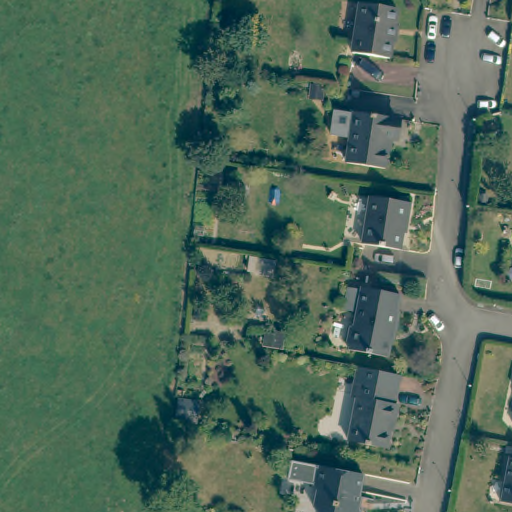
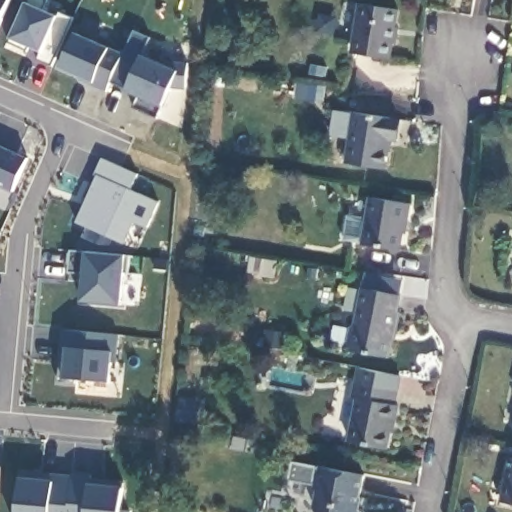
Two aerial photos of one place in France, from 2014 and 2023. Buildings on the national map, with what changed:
new [(11,0),(0,25),(0,0),(11,0)]
new [(57,16),(73,18),(52,66),(37,60),(41,51),(28,46),(24,50),(9,44),(31,0),(46,0),(42,9),(57,16)]
unchanged [(397,11),(395,28),(397,28),(395,43),(392,43),(390,60),(352,54),(360,5),(397,11)]
new [(106,92),(79,81),(81,78),(61,68),(76,34),(110,48),(124,54),(106,92)]
new [(143,56),(158,61),(187,63),(187,76),(186,89),(170,89),(161,108),(157,118),(133,108),(138,96),(126,91),(143,56)]
unchanged [(331,131),(335,106),(354,110),(354,109),(398,115),(394,136),(389,135),(385,165),(346,159),(350,135),(331,131)]
new [(28,159),(14,192),(0,186),(0,146),(28,159)]
new [(96,177),(94,176),(101,159),(137,175),(130,191),(158,203),(146,229),(133,223),(123,244),(75,223),(96,177)]
unchanged [(409,205),(406,225),(403,225),(399,252),(362,246),(370,198),(409,205)]
new [(122,306),(82,302),(85,273),(70,271),(71,251),(87,253),(125,256),(122,306)]
unchanged [(397,312),(399,313),(396,330),(393,330),(388,358),(348,351),(349,349),(346,345),(349,328),(354,324),(356,313),(344,310),(348,288),(360,290),(361,288),(400,296),(397,312)]
new [(87,380),(73,380),(74,384),(59,383),(62,330),(119,335),(116,364),(113,362),(110,382),(87,380)]
unchanged [(263,347),(267,330),(271,331),(286,334),(283,350),(270,348),(263,347)]
unchanged [(394,406),(398,406),(394,424),(392,423),(386,450),(349,442),(357,399),(352,398),(355,383),(397,391),(394,406)]
unchanged [(509,458),(512,459),(512,505),(501,503),(509,458)]
unchanged [(357,507),(361,512),(317,512),(314,509),(317,493),(312,486),(315,467),(363,476),(357,507)]
new [(21,477),(54,480),(55,476),(72,477),(72,473),(92,474),(91,484),(124,487),(133,490),(131,512),(17,512),(21,477)]

